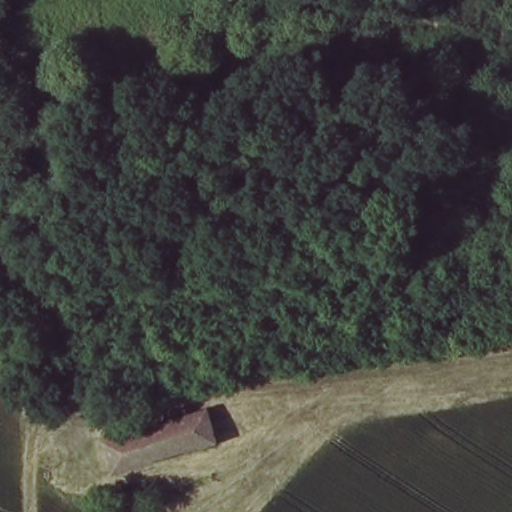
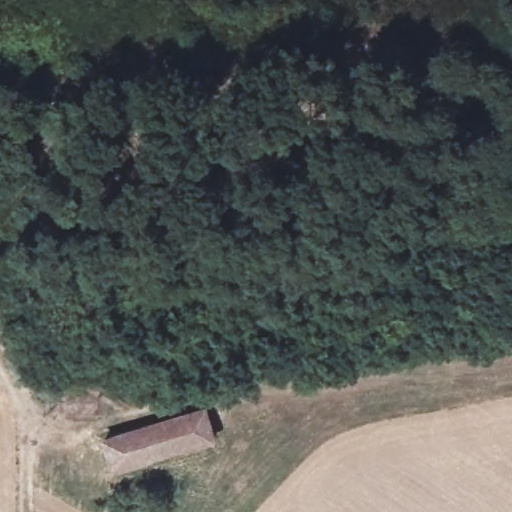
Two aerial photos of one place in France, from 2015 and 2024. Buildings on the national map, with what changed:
unchanged [(200,411),(211,442),(171,455),(161,424),(200,411)]
unchanged [(117,473),(109,440),(161,424),(171,455),(117,473)]

